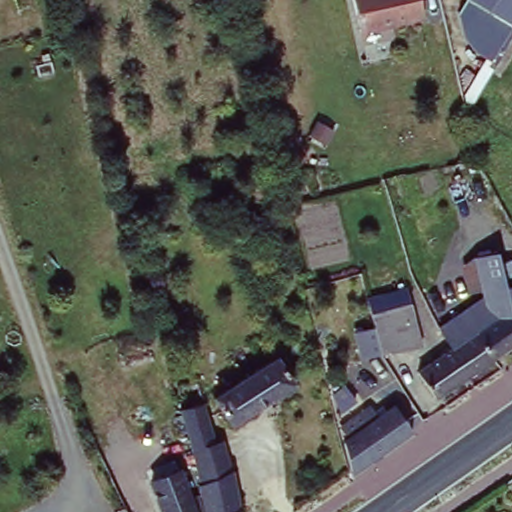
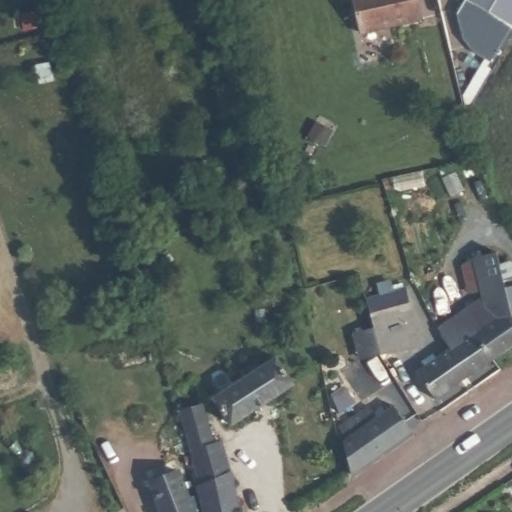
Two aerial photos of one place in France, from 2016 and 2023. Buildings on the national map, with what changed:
unchanged [(357,33),(350,0),(417,0),(420,18),(357,33)]
unchanged [(511,43),(495,63),(468,112),(461,96),(484,56),(464,39),(458,12),(466,0),(483,0),(481,3),(512,24),(512,43),(511,43)]
unchanged [(481,3),(483,0),(512,0),(512,24),(481,3)]
unchanged [(489,350),(472,329),(459,337),(454,318),(484,310),(476,256),(500,251),(504,268),(508,285),(512,284),(512,334),(489,350)]
unchanged [(356,333),(375,327),(368,304),(410,294),(422,343),(383,353),(382,352),(363,357),(356,333)]
unchanged [(472,329),(489,350),(438,387),(423,362),(459,337),(472,329)]
unchanged [(230,423),(210,395),(262,359),(278,348),(298,376),(230,423)]
unchanged [(197,484),(198,483),(189,440),(186,440),(180,411),(201,405),(212,442),(223,441),(228,469),(233,469),(240,512),(205,512),(197,484)]
unchanged [(345,438),(337,427),(367,406),(375,417),(391,406),(408,432),(348,474),(341,441),(345,438)]
unchanged [(198,512),(163,512),(154,478),(188,470),(193,491),(198,512)]

